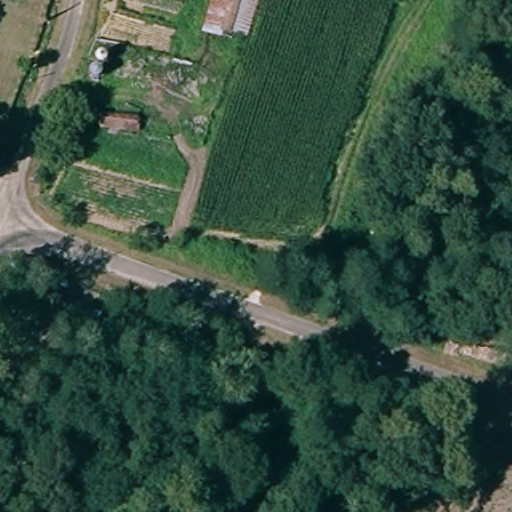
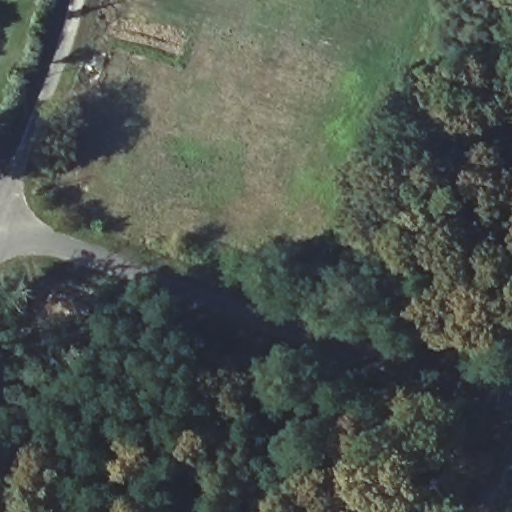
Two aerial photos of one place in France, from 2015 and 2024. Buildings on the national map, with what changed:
demolished [(206,34),(213,0),(263,0),(250,42),(206,34)]

